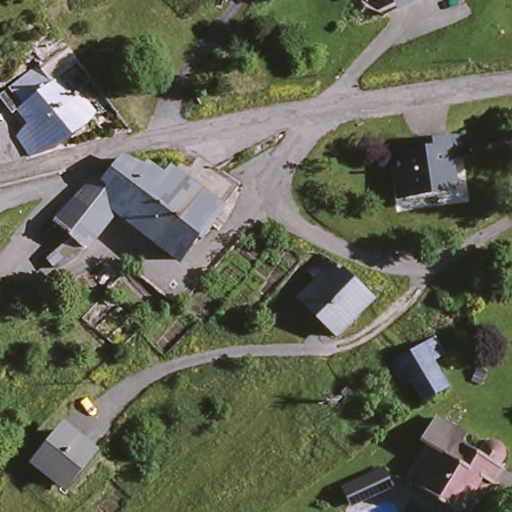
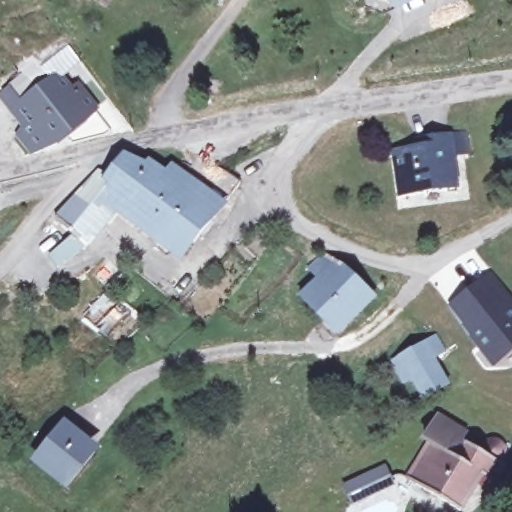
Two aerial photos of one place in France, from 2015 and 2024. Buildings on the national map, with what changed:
unchanged [(376,13),(371,0),(391,0),(393,8),(376,13)]
unchanged [(55,31),(82,70),(64,85),(75,96),(83,88),(100,110),(34,157),(20,137),(28,123),(20,111),(15,115),(1,96),(40,66),(33,46),(55,31)]
unchanged [(422,156),(421,147),(470,139),(473,162),(456,164),(461,193),(406,202),(400,159),(422,156)]
unchanged [(56,254),(73,245),(80,236),(62,220),(63,219),(71,209),(101,175),(105,170),(113,174),(131,154),(133,156),(145,163),(155,170),(160,166),(188,185),(195,177),(233,204),(221,221),(215,218),(188,254),(124,210),(93,247),(87,255),(84,253),(62,266),(56,254)]
unchanged [(321,279),(311,269),(328,254),(337,264),(340,261),(378,296),(338,332),(304,294),(321,279)]
new [(490,268),(512,296),(512,350),(491,366),(445,304),(490,268)]
unchanged [(441,355),(451,376),(454,382),(428,396),(409,357),(443,338),(450,351),(441,355)]
unchanged [(73,426),(98,451),(68,480),(43,454),(73,426)]
unchanged [(490,442),(494,442),(499,442),(502,444),(505,447),(507,452),(506,455),(499,463),(509,469),(500,485),(498,488),(483,480),(464,512),(461,512),(409,484),(428,447),(444,456),(454,438),(481,453),(483,449),(485,444),(490,442)]
unchanged [(381,464),(392,478),(359,504),(348,491),(381,464)]

